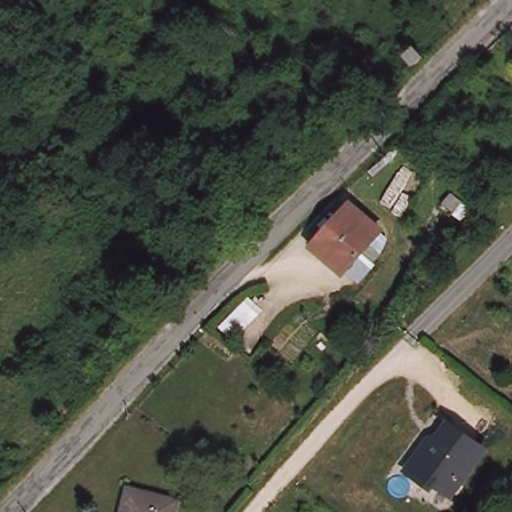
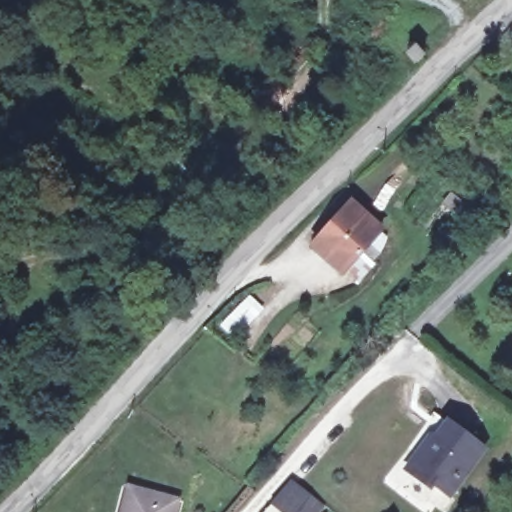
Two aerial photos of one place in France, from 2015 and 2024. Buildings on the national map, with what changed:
unchanged [(355,270),(343,258),(339,263),(311,236),(344,196),(374,223),(363,236),(374,247),(355,270)]
unchanged [(482,447),(446,490),(431,479),(427,482),(404,464),(429,434),(435,434),(447,421),(482,447)]
new [(287,480),(323,503),(318,512),(278,512),(271,508),(287,480)]
unchanged [(174,499),(170,512),(122,512),(131,486),(174,499)]

